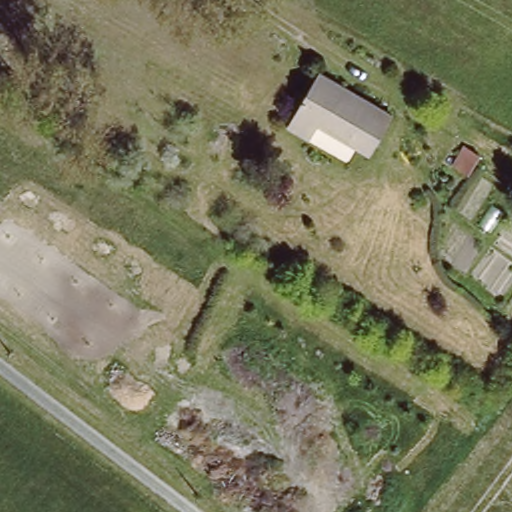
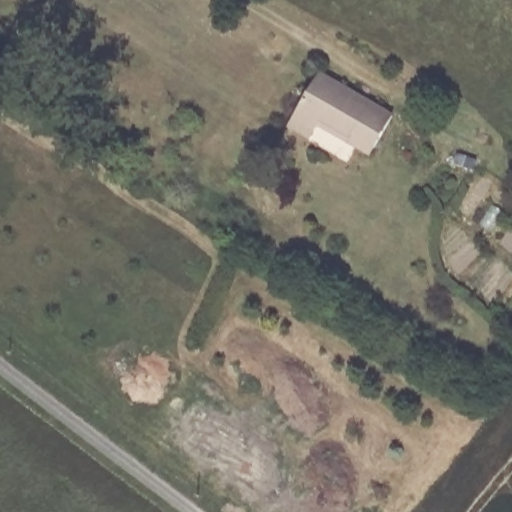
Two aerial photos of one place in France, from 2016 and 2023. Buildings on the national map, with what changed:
unchanged [(355,145),(317,123),(309,136),(286,123),(317,69),(391,112),(372,144),(368,152),(355,145)]
unchanged [(459,156),(473,164),(462,184),(448,176),(459,156)]

